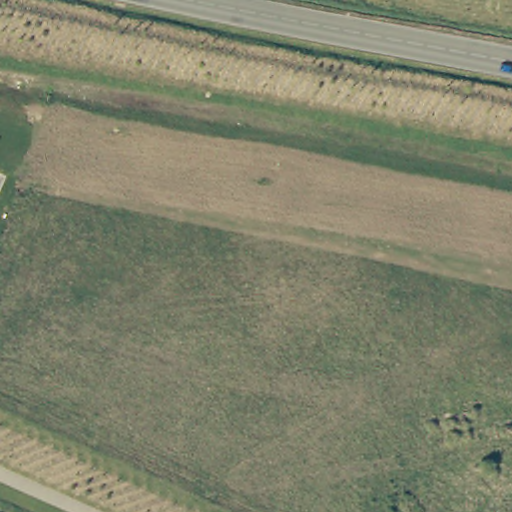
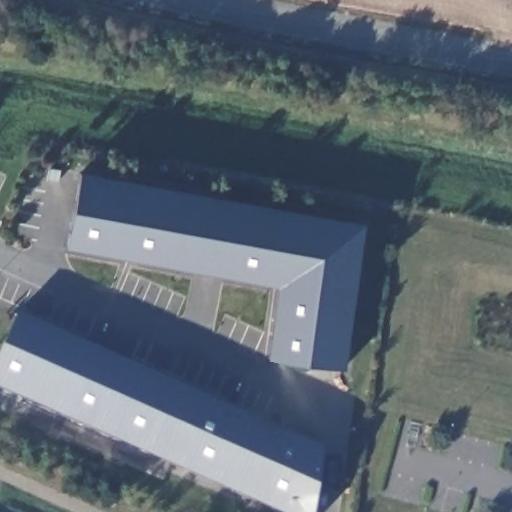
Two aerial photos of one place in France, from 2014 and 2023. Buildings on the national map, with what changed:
new [(346,368),(267,360),(276,287),(66,247),(79,171),(363,223),(346,368)]
new [(323,448),(314,512),(276,512),(0,389),(0,349),(17,312),(323,448)]

